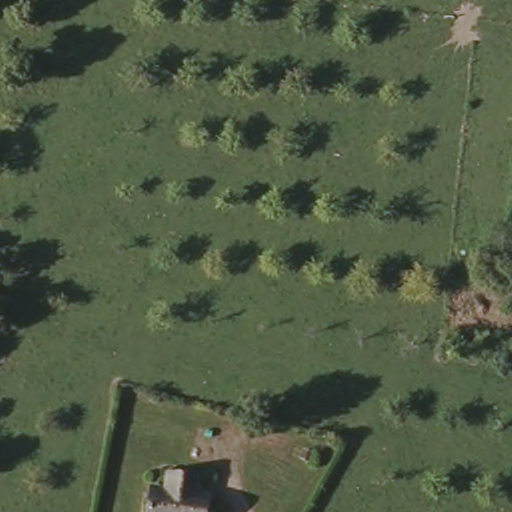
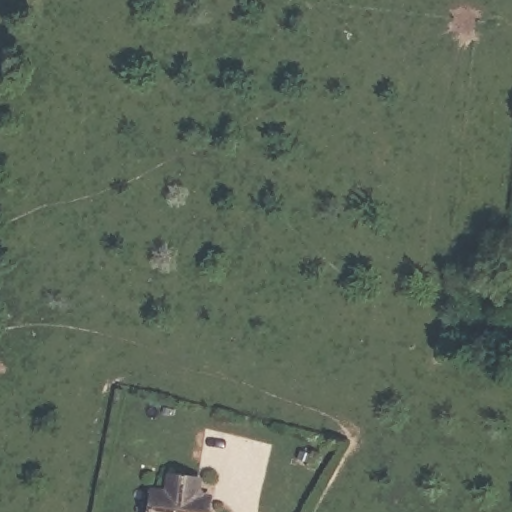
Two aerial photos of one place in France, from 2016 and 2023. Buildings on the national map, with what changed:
unchanged [(195,477),(194,493),(208,497),(207,509),(207,512),(146,512),(147,499),(149,488),(167,489),(169,473),(195,477)]

